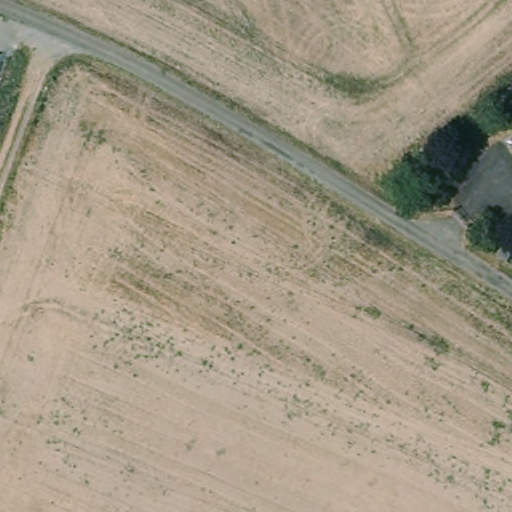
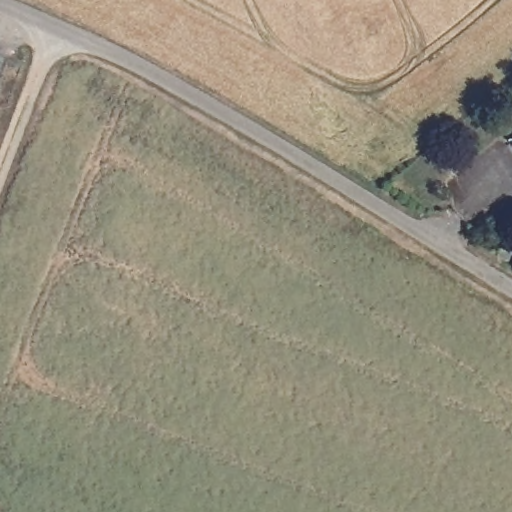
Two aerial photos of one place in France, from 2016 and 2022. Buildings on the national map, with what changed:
unchanged [(497,256),(508,248),(512,253),(512,259),(505,265),(497,256)]

